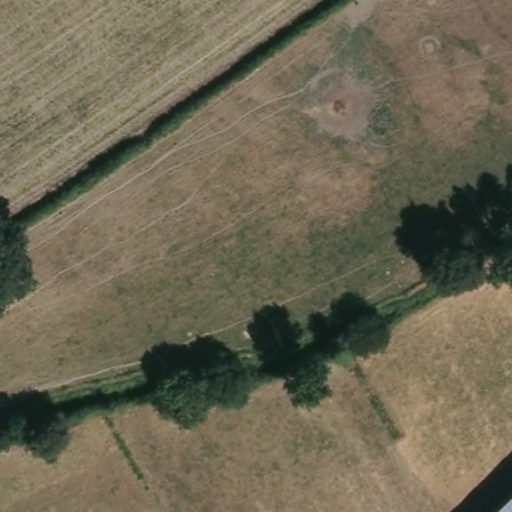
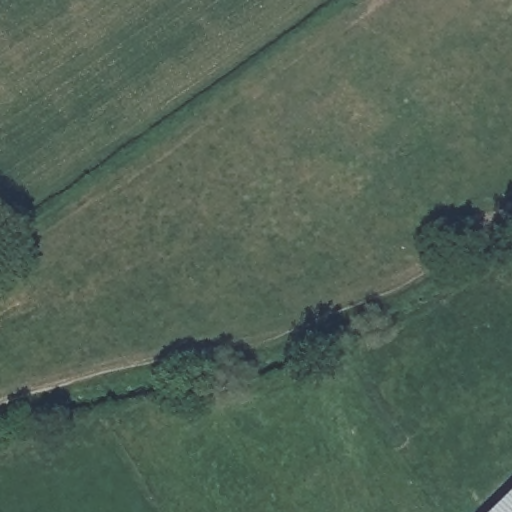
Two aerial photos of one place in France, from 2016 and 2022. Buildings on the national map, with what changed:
unchanged [(512,512),(492,512),(512,497),(512,512)]

